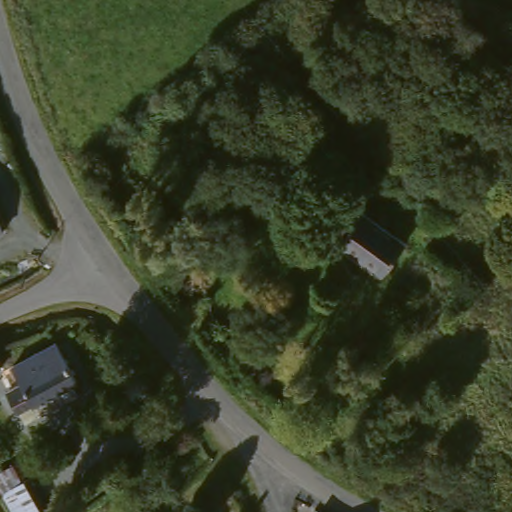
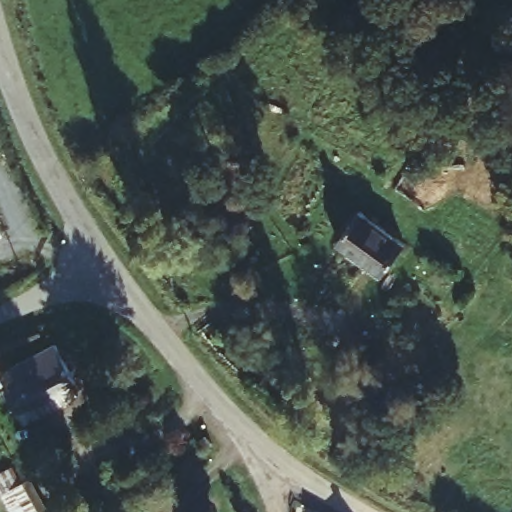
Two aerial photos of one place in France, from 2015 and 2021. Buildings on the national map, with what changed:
unchanged [(351,210),(394,242),(370,275),(326,241),(351,210)]
unchanged [(1,239),(0,239),(0,237),(1,239)]
unchanged [(8,374),(54,348),(77,390),(31,416),(29,413),(12,423),(0,402),(0,399),(16,390),(8,374)]
unchanged [(47,508),(41,512),(12,512),(0,492),(0,489),(24,473),(47,508)]

